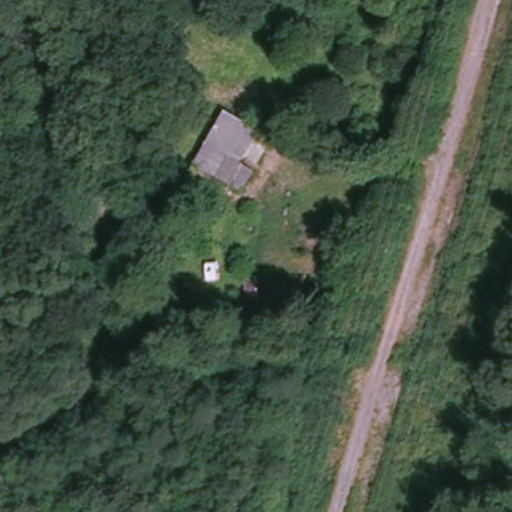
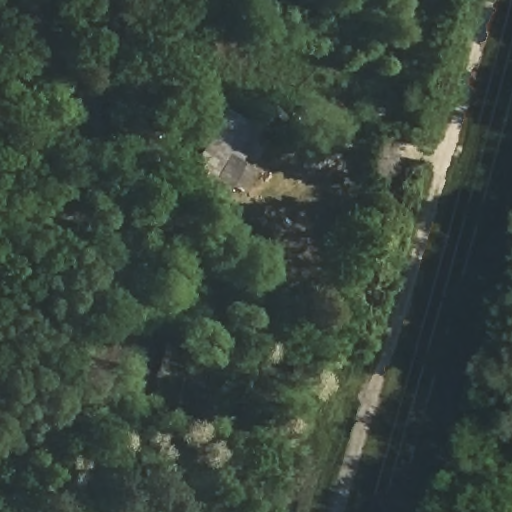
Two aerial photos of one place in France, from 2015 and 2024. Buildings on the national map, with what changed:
unchanged [(236,154),(247,161),(234,184),(220,176),(200,205),(180,195),(229,108),(253,124),(236,154)]

